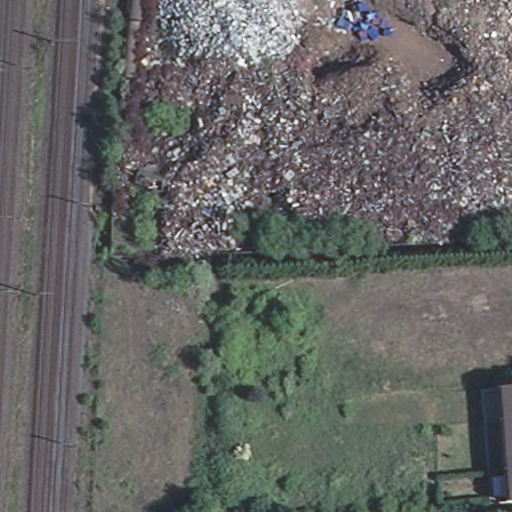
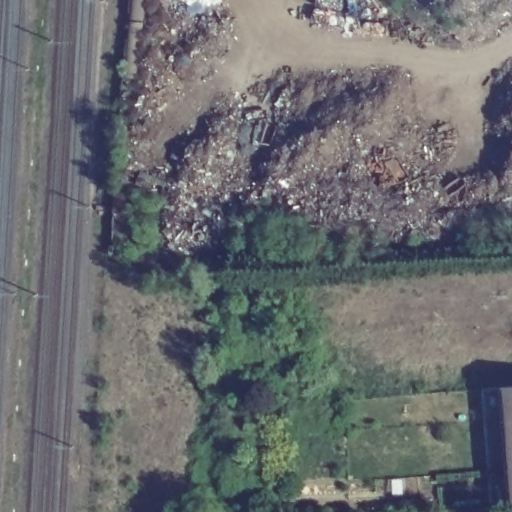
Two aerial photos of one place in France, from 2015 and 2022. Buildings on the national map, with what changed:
unchanged [(203,67),(188,67),(190,47),(203,47),(203,67)]
unchanged [(150,180),(150,164),(152,143),(168,144),(167,165),(166,181),(150,180)]
unchanged [(512,502),(509,502),(500,387),(512,386),(512,502)]

